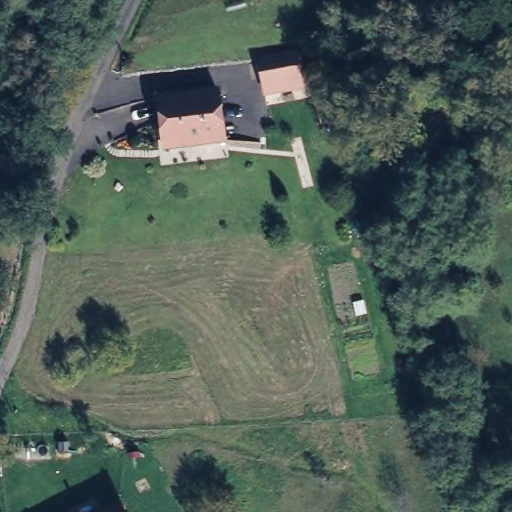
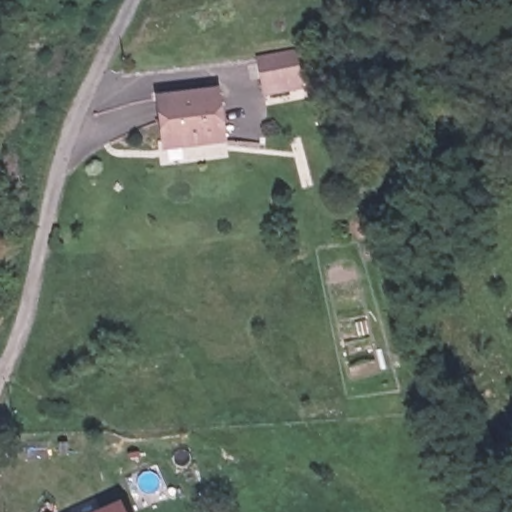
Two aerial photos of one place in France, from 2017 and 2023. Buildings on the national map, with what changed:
unchanged [(299,67),(303,90),(268,93),(266,71),(299,67)]
unchanged [(218,86),(224,130),(162,136),(154,95),(218,86)]
unchanged [(116,499),(121,512),(88,512),(116,499)]
unchanged [(46,511),(46,512),(42,512),(46,511)]

